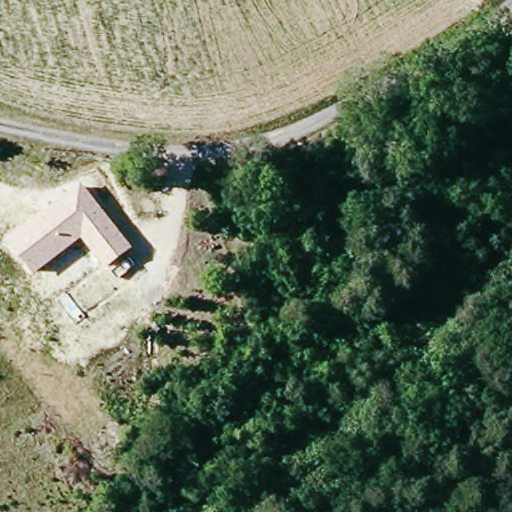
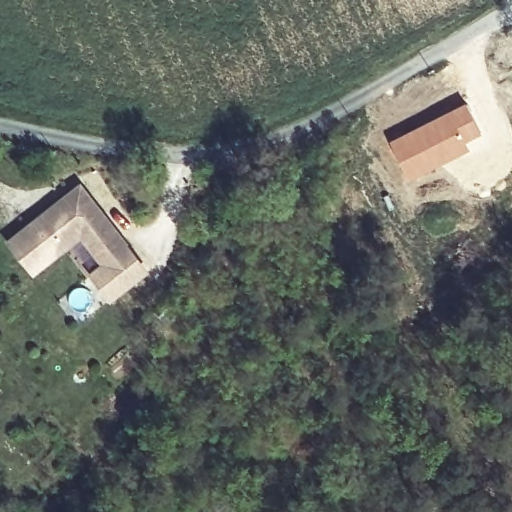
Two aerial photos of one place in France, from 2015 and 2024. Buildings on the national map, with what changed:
new [(465,102),(481,134),(467,142),(471,150),(409,181),(387,141),(465,102)]
unchanged [(35,273),(7,240),(81,182),(132,247),(105,268),(81,239),(35,273)]

